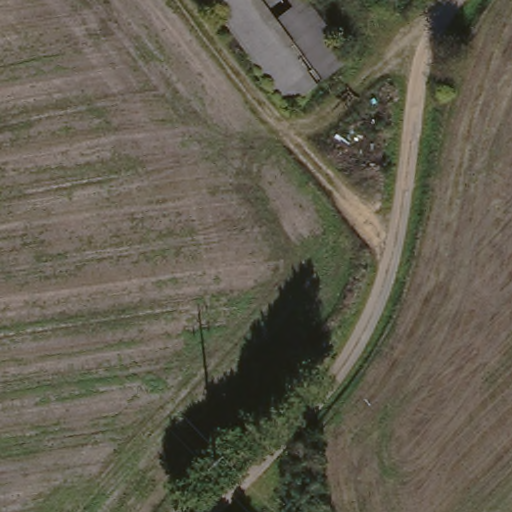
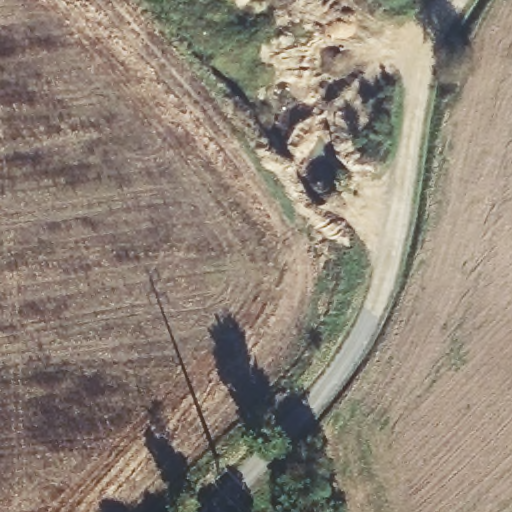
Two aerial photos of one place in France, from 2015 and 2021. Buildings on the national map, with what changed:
new [(351,60),(289,108),(210,0),(308,0),(351,60)]
demolished [(362,53),(297,102),(221,0),(322,0),(362,53)]

